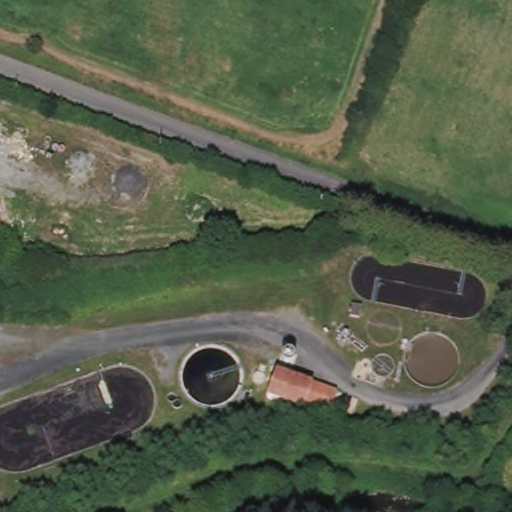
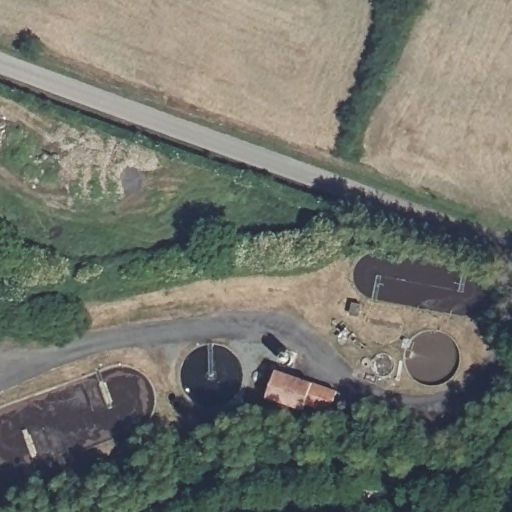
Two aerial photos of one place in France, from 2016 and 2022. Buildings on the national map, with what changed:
unchanged [(267,397),(276,371),(337,392),(330,413),(305,404),(303,409),(267,397)]

